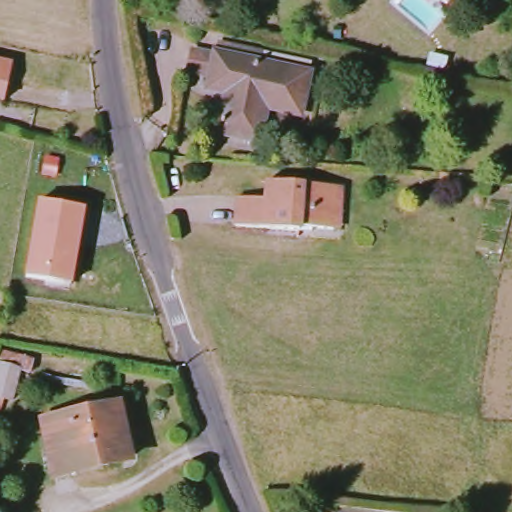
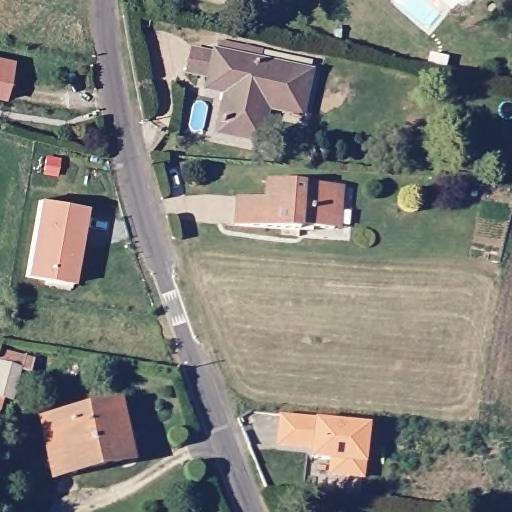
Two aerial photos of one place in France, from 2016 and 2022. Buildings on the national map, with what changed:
unchanged [(213,131),(222,88),(208,85),(209,79),(188,73),(193,47),(228,55),(230,46),(262,53),(261,62),(310,72),(300,114),(265,107),(258,140),(213,131)]
unchanged [(0,102),(0,64),(12,66),(5,102),(0,102)]
unchanged [(337,231),(330,230),(295,228),(295,232),(232,228),(235,198),(267,200),(268,182),(332,186),(340,187),(337,231)]
unchanged [(70,285),(23,275),(37,199),(85,207),(70,285)]
unchanged [(13,389),(11,397),(0,394),(0,363),(20,368),(13,389)]
unchanged [(130,462),(55,477),(40,417),(112,402),(117,401),(117,403),(130,462)]
new [(327,476),(328,462),(310,460),(311,452),(275,447),(279,415),(315,420),(370,425),(365,466),(362,480),(327,476)]

